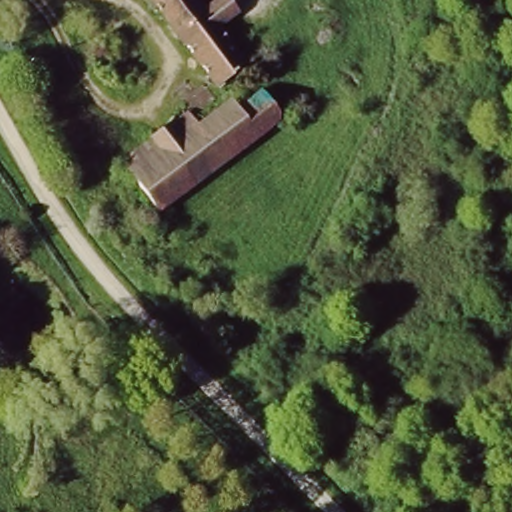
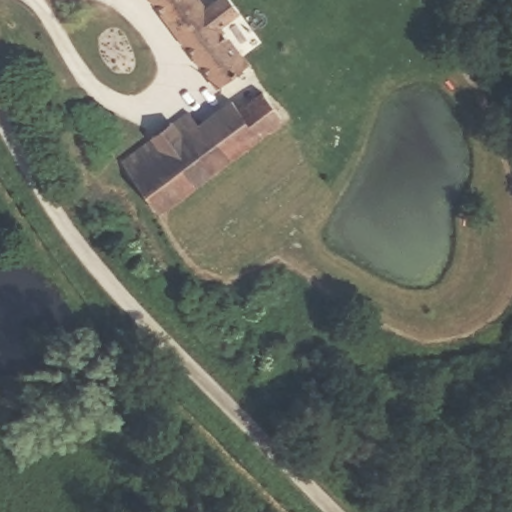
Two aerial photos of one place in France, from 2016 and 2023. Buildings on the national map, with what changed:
unchanged [(217,6),(229,24),(212,35),(237,71),(212,89),(149,0),(190,0),(202,17),(217,6)]
unchanged [(161,216),(124,165),(184,120),(194,130),(226,104),(232,113),(259,91),(284,124),(161,216)]

